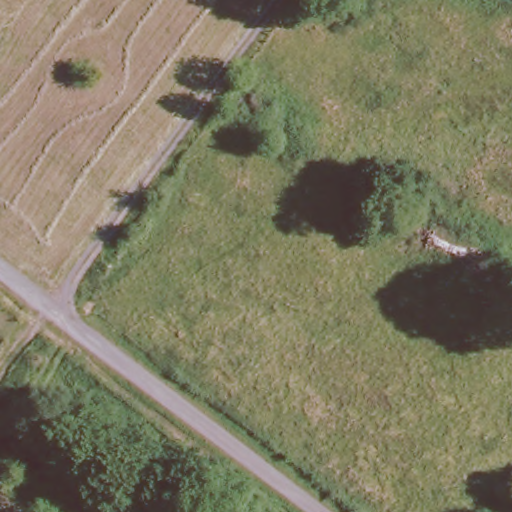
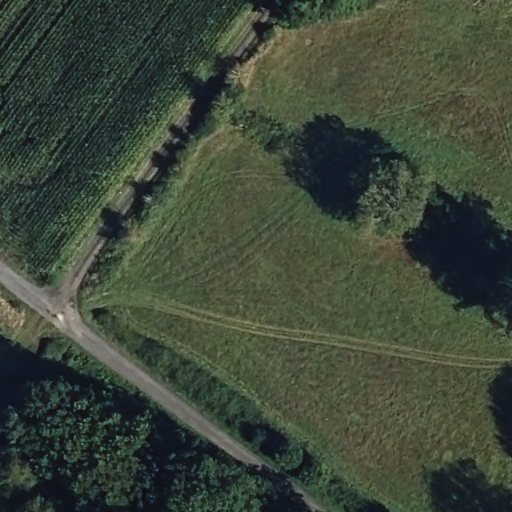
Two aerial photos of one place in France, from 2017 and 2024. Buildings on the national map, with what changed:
[]

